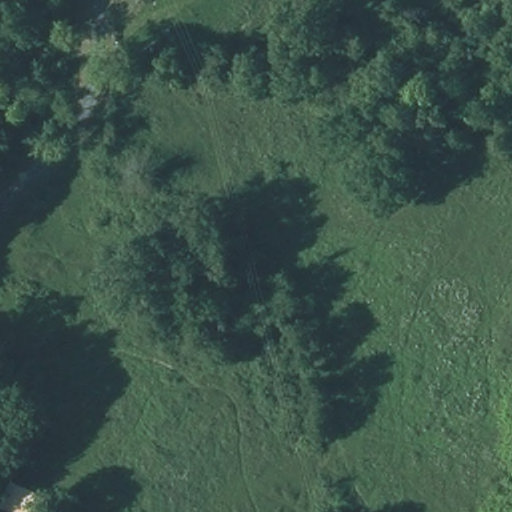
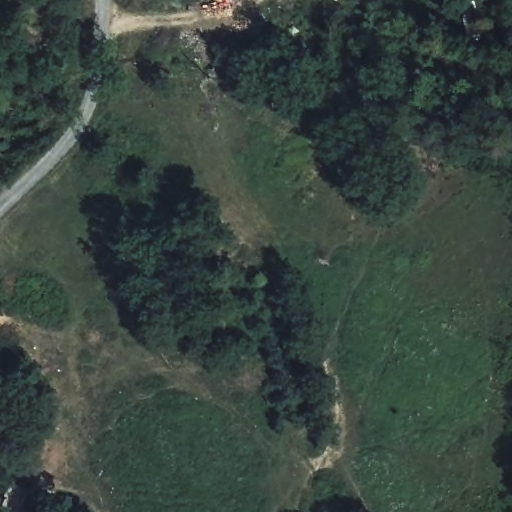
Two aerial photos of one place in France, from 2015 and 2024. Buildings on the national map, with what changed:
unchanged [(45,496),(36,512),(9,512),(0,508),(0,496),(8,479),(45,496)]

